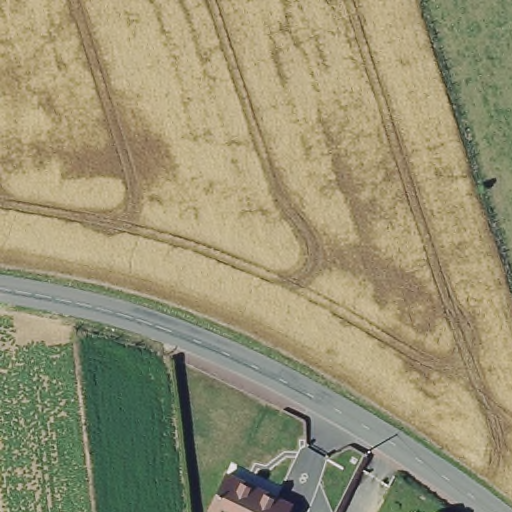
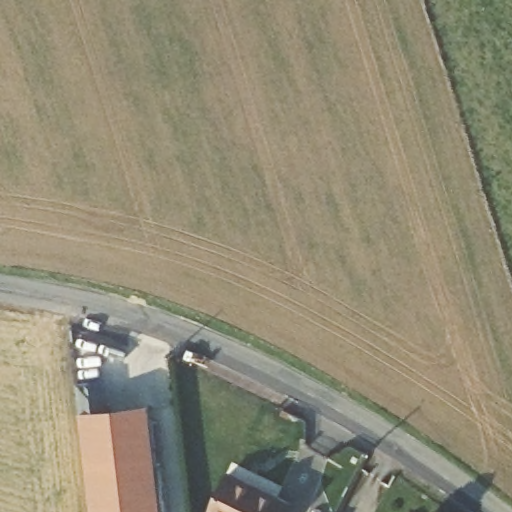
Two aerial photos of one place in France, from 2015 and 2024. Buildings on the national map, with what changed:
new [(107,377),(112,407),(153,403),(166,512),(96,512),(80,380),(107,377)]
unchanged [(211,509),(230,472),(290,503),(285,512),(218,512),(211,509)]

